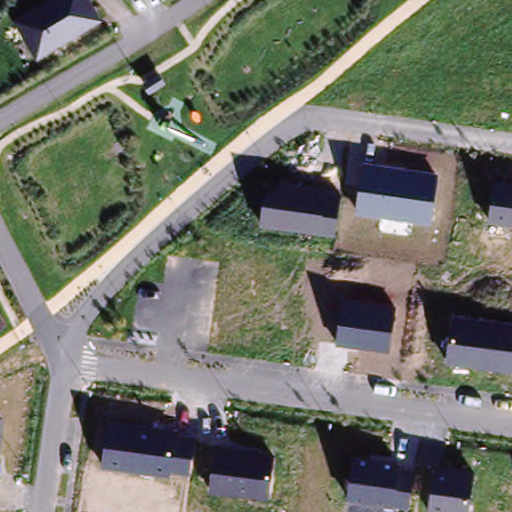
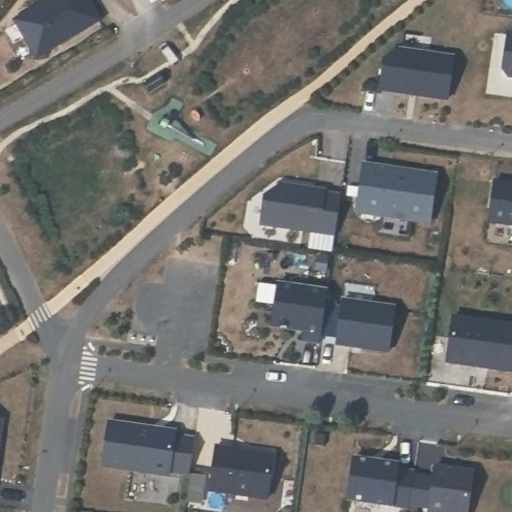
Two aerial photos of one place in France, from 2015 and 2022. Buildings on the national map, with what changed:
unchanged [(15,20),(47,0),(90,0),(102,22),(36,62),(15,20)]
new [(512,32),(512,74),(507,74),(502,67),(507,31),(512,32)]
new [(383,54),(395,45),(451,52),(445,94),(378,85),(383,54)]
unchanged [(431,225),(357,214),(365,164),(437,175),(431,225)]
unchanged [(495,181),(512,183),(512,226),(490,223),(495,181)]
unchanged [(260,227),(263,196),(280,186),(340,195),(333,236),(260,227)]
new [(271,280),(319,287),(312,339),(295,336),(296,326),(266,321),(271,280)]
unchanged [(336,345),(342,299),(395,307),(389,352),(336,345)]
unchanged [(454,317),(512,324),(512,372),(448,363),(454,317)]
unchanged [(3,419),(0,447),(0,419),(3,419)]
unchanged [(110,420),(177,430),(176,435),(195,438),(190,475),(171,473),(170,476),(103,468),(110,420)]
unchanged [(269,499),(211,491),(216,446),(274,454),(269,499)]
unchanged [(402,463),(401,469),(413,471),(408,509),(348,500),(354,457),(402,463)]
unchanged [(475,471),(469,512),(429,512),(436,464),(475,471)]

